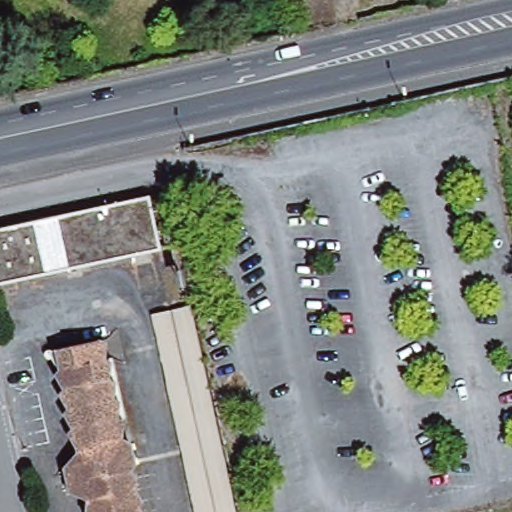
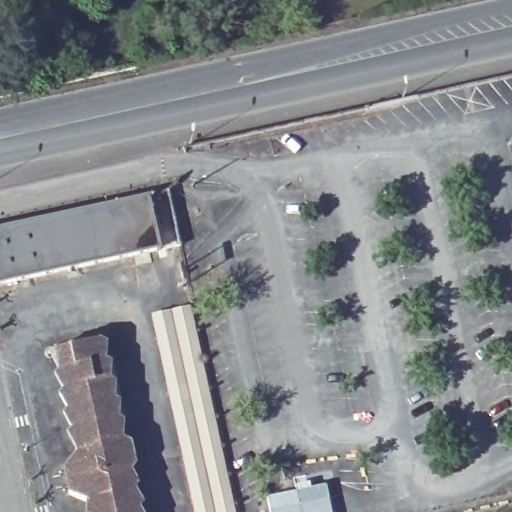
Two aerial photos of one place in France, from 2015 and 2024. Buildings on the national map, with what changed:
unchanged [(148,197),(160,249),(0,284),(0,230),(148,197)]
unchanged [(150,315),(191,306),(237,512),(195,512),(150,315)]
unchanged [(64,469),(76,452),(54,352),(104,341),(144,512),(90,512),(88,501),(67,493),(64,469)]
new [(295,490),(293,478),(308,475),(311,486),(326,482),(333,512),(269,512),(265,496),(295,490)]

